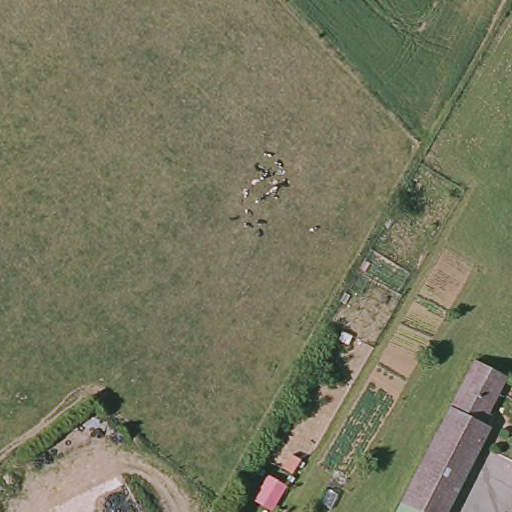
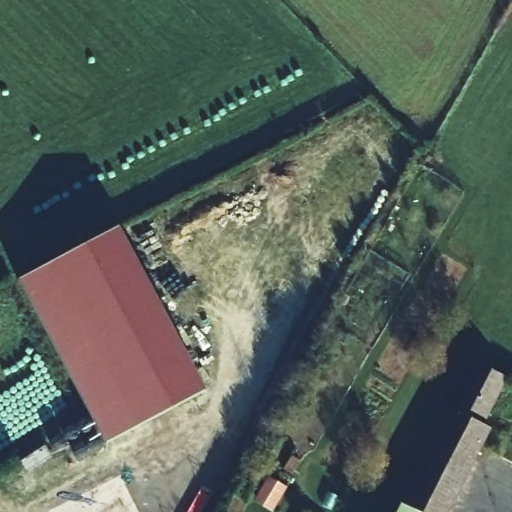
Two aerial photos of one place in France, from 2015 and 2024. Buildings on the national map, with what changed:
new [(104,439),(20,278),(117,224),(205,388),(104,439)]
unchanged [(507,378),(484,422),(491,425),(444,512),(395,512),(477,361),(507,378)]
unchanged [(287,499),(279,512),(269,512),(259,506),(269,489),(287,499)]

